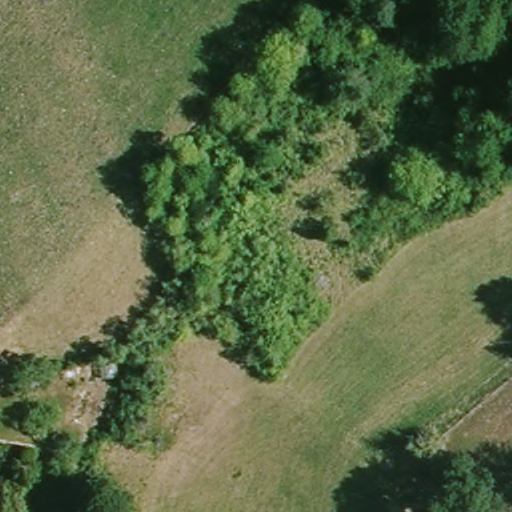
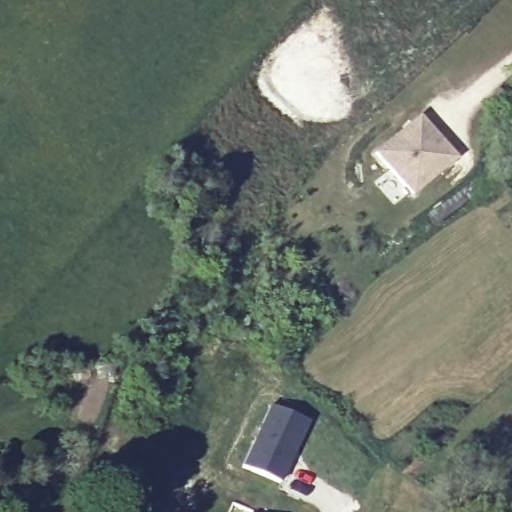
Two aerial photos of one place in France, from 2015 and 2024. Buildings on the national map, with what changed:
new [(421,119),(456,162),(415,196),(380,153),(421,119)]
new [(266,404),(306,422),(275,487),(259,478),(260,476),(238,465),(266,404)]

